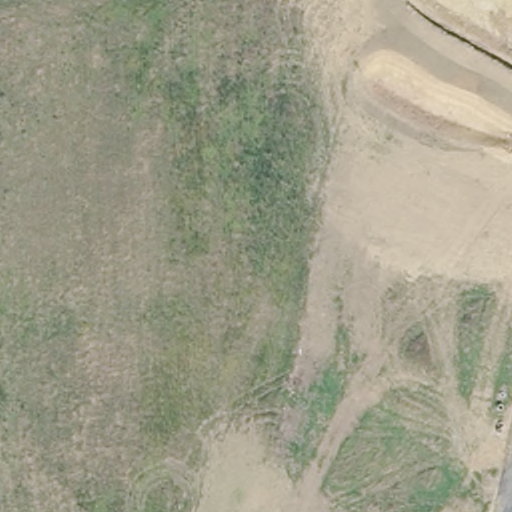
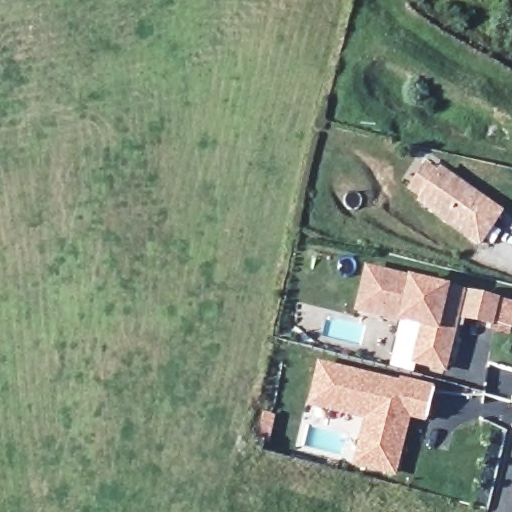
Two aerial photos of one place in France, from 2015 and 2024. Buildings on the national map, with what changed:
new [(412,186),(427,164),(440,172),(442,169),(501,209),(480,240),(421,199),(424,195),(412,186)]
new [(425,322),(359,306),(369,268),(463,291),(444,365),(424,360),(417,358),(420,345),(425,322)]
new [(471,293),(497,300),(493,320),(466,313),(471,293)]
new [(358,459),(369,416),(367,412),(333,404),(313,398),(322,362),(370,375),(369,376),(377,379),(378,377),(402,383),(402,380),(436,388),(431,406),(428,416),(409,411),(406,421),(394,468),(358,459)]

